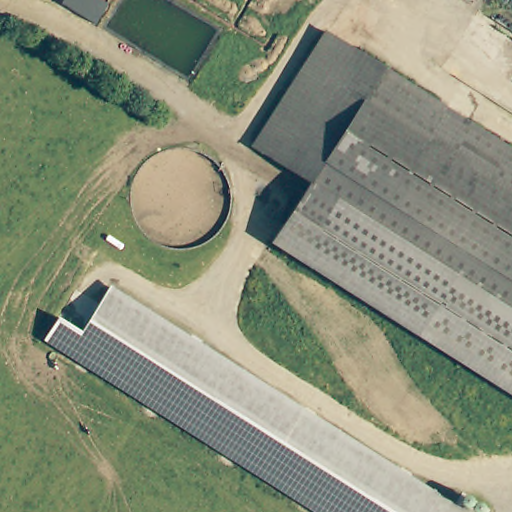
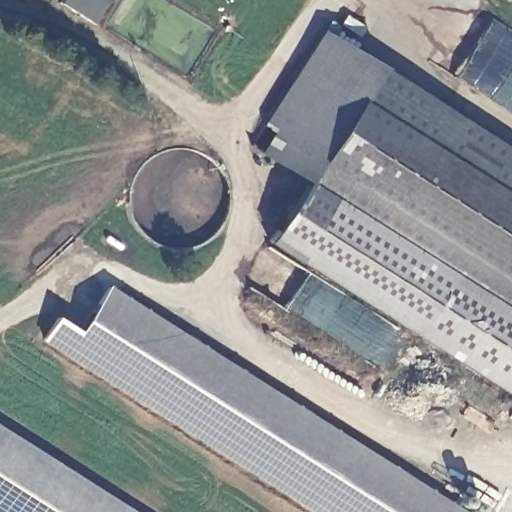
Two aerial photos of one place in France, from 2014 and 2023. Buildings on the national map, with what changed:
unchanged [(254,146),(328,31),(386,68),(312,183),(254,146)]
unchanged [(512,149),(512,396),(274,244),(305,193),(312,183),(386,68),(512,149)]
unchanged [(59,317),(81,332),(110,287),(466,512),(313,512),(44,341),(59,317)]
new [(0,512),(0,427),(134,512),(0,512)]

